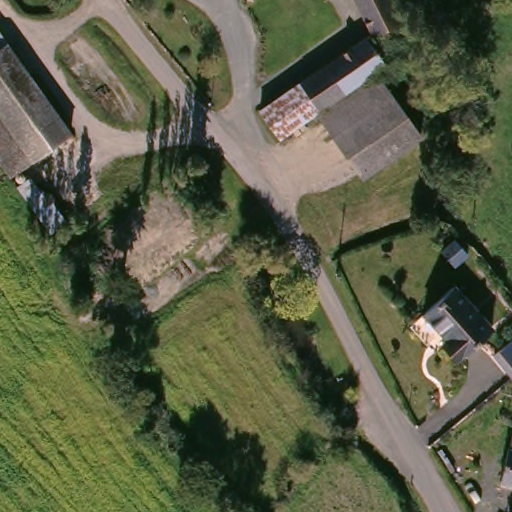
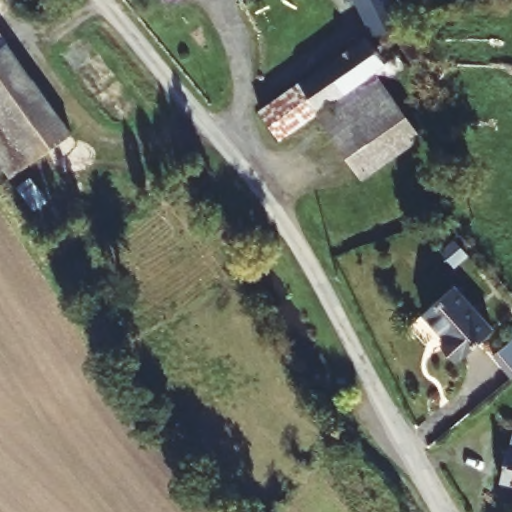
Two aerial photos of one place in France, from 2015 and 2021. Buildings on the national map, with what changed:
unchanged [(418,60),(398,22),(380,31),(364,0),(400,0),(408,16),(428,55),(418,60)]
unchanged [(0,27),(78,132),(33,166),(74,221),(58,234),(0,154),(0,27)]
unchanged [(372,32),(380,44),(393,35),(411,62),(408,65),(390,78),(380,66),(322,108),(300,125),(281,97),(372,32)]
unchanged [(426,91),(407,105),(426,131),(369,173),(322,108),(380,66),(390,78),(408,65),(426,91)]
unchanged [(300,125),(276,141),(256,115),(281,97),(300,125)]
unchanged [(499,323),(464,355),(448,340),(454,334),(430,308),(461,281),(499,323)]
unchanged [(512,338),(512,379),(492,355),(512,338)]
unchanged [(505,481),(512,457),(512,483),(505,481)]

